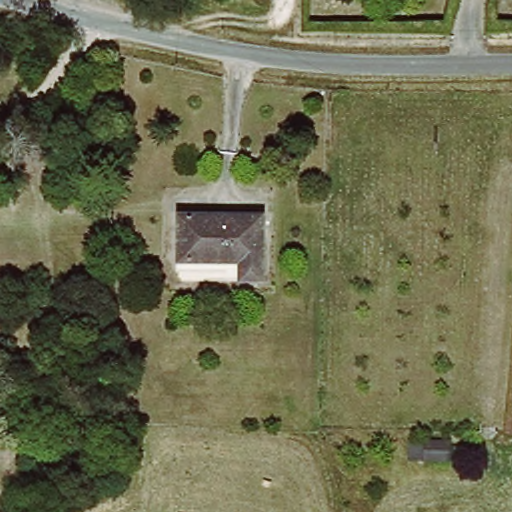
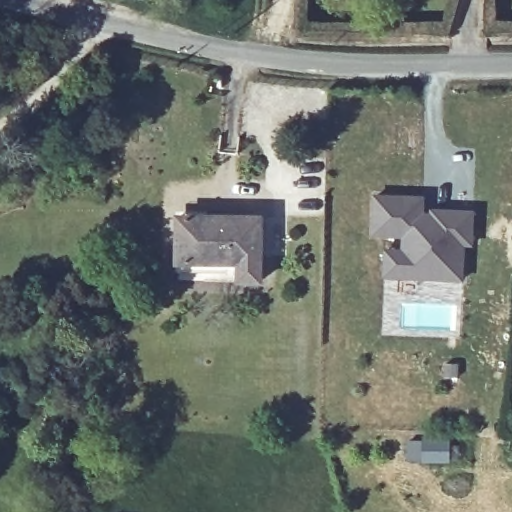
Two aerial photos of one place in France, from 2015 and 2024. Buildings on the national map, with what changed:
new [(401,250),(401,236),(371,235),(372,196),(421,198),(420,219),(430,219),(430,210),(470,211),(469,243),(461,242),(460,278),(400,277),(383,276),(384,250),(401,250)]
unchanged [(265,284),(211,282),(211,270),(182,266),(187,219),(268,223),(265,284)]

